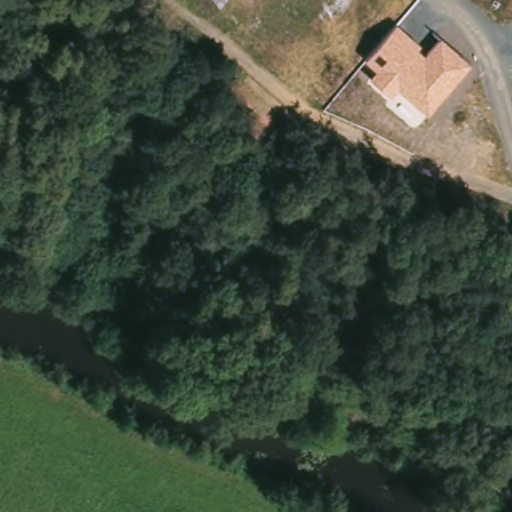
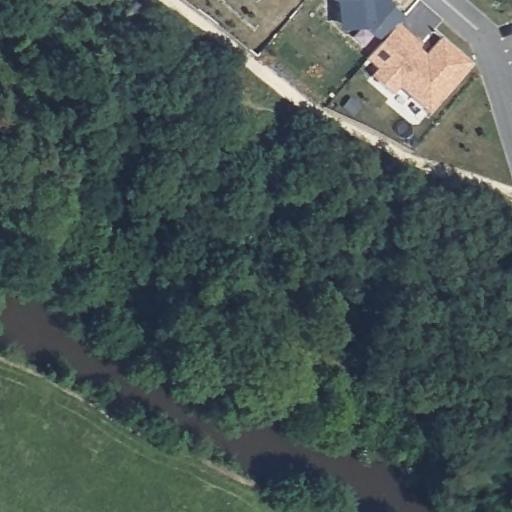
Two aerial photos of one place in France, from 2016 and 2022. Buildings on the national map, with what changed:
new [(395,24),(380,41),(371,31),(336,31),(335,1),(331,0),(384,0),(402,15),(395,24)]
unchanged [(397,88),(390,95),(368,76),(375,69),(364,59),(395,24),(423,45),(420,49),(425,54),(440,38),(471,66),(428,116),(397,88)]

